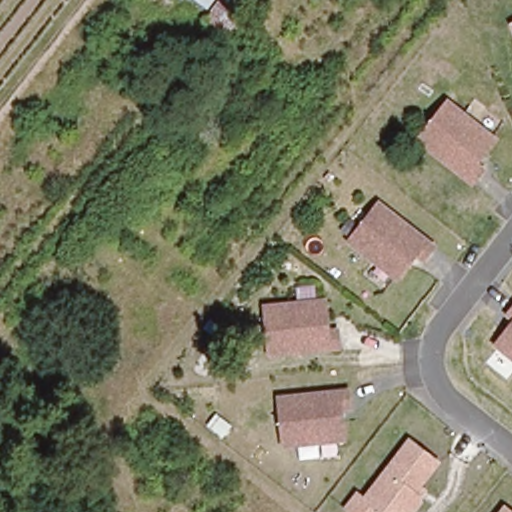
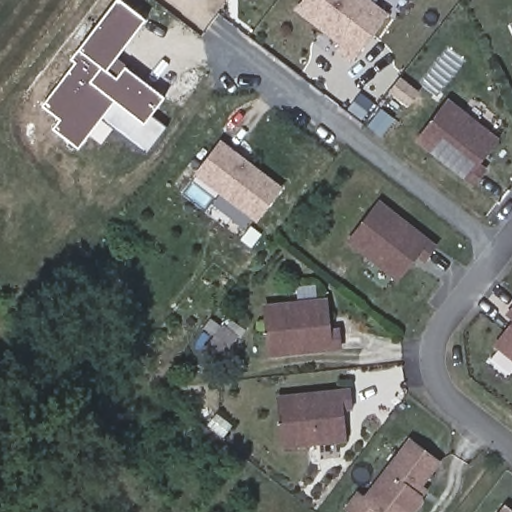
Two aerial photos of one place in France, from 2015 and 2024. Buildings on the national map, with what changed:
demolished [(222,46),(201,28),(207,20),(185,8),(174,20),(148,3),(149,0),(254,0),(235,28),(222,46)]
new [(303,0),(365,0),(386,16),(351,61),(337,51),(341,46),(332,39),(322,31),(295,11),(303,0)]
new [(166,96),(151,115),(168,128),(147,154),(102,119),(80,148),(55,129),(62,120),(45,106),(78,64),(73,60),(119,1),(145,21),(116,57),(166,96)]
new [(397,106),(385,97),(397,81),(409,91),(397,106)]
unchanged [(419,140),(450,101),(503,139),(482,164),(489,171),(474,187),(419,140)]
new [(257,221),(197,174),(222,143),(235,153),(242,158),(282,189),(257,221)]
unchanged [(349,244),(381,202),(438,247),(424,264),(417,260),(402,284),(349,244)]
new [(251,269),(231,254),(251,228),(271,244),(251,269)]
unchanged [(330,298),(333,328),(342,327),(343,344),(273,352),(269,305),(330,298)]
unchanged [(512,312),(512,318),(509,316),(512,312)]
unchanged [(512,327),(512,359),(496,347),(512,327)]
unchanged [(353,392),(355,409),(346,410),(350,442),(289,449),(282,400),(353,392)]
unchanged [(358,491),(365,495),(408,437),(442,463),(425,489),(429,494),(416,512),(352,512),(346,508),(358,491)]
unchanged [(512,510),(512,512),(501,512),(506,506),(512,510)]

